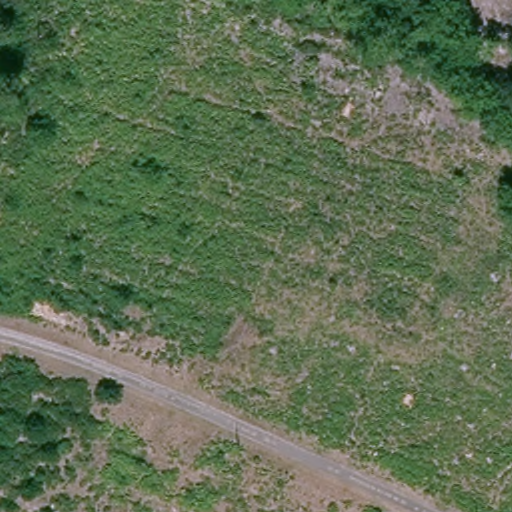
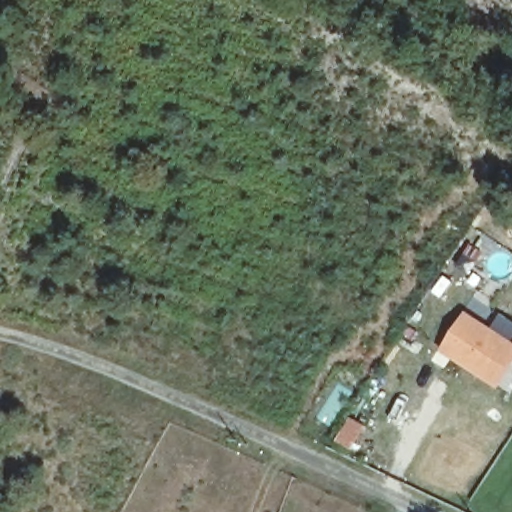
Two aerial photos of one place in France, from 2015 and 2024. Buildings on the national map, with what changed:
new [(512,343),(512,368),(497,390),(439,352),(465,313),(512,343)]

